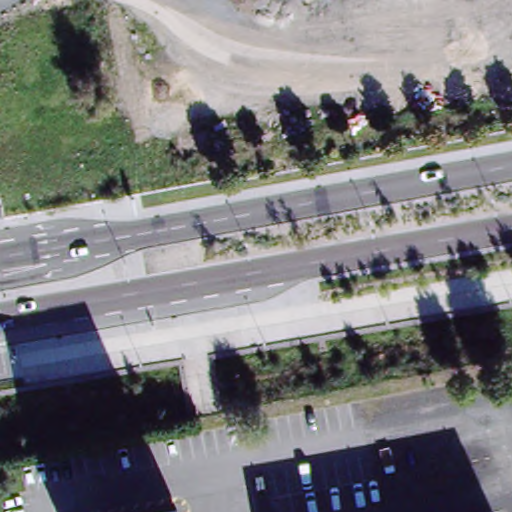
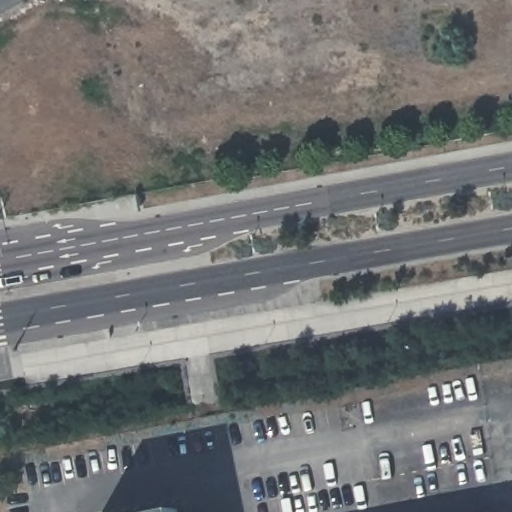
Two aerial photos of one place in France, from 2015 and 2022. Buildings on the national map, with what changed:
unchanged [(180,512),(147,512),(178,506),(180,512)]

